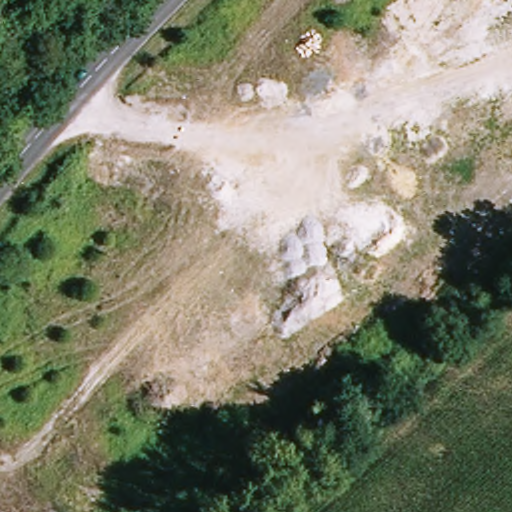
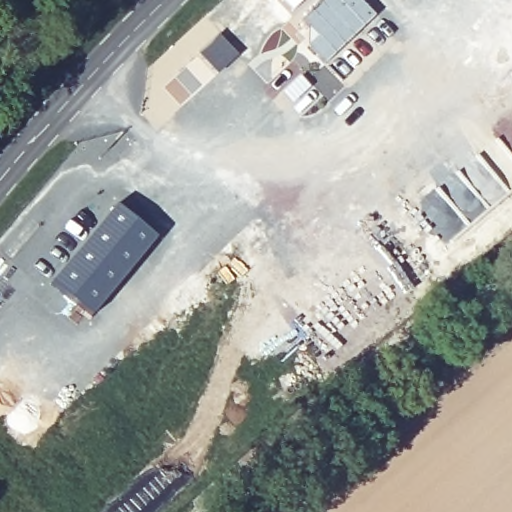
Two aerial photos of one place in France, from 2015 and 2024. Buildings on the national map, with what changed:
new [(301,21),(324,0),(357,0),(371,17),(321,65),(306,48),(316,38),(301,21)]
new [(115,204),(156,239),(91,316),(50,282),(115,204)]

